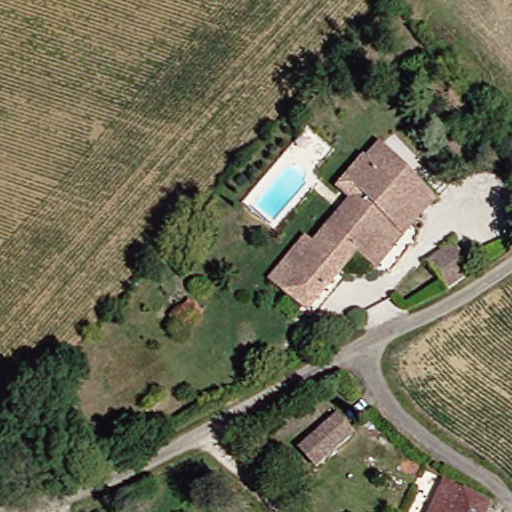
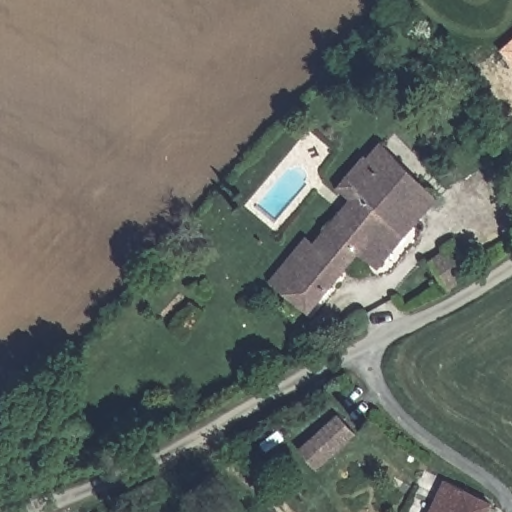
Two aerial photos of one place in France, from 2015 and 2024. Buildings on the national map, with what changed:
new [(500,48),(512,39),(512,62),(500,48)]
unchanged [(428,217),(372,168),(383,154),(442,200),(428,217)]
unchanged [(381,270),(362,257),(315,311),(290,290),(368,203),(360,194),(354,189),(372,168),(428,217),(381,270)]
unchanged [(281,283),(360,194),(368,203),(290,290),(281,283)]
unchanged [(436,267),(458,248),(480,268),(454,288),(436,267)]
unchanged [(322,470),(300,449),(333,418),(354,439),(322,470)]
unchanged [(489,504),(486,512),(428,512),(441,482),(489,504)]

